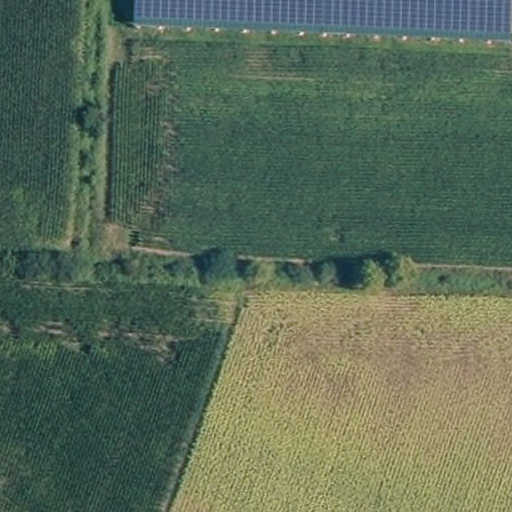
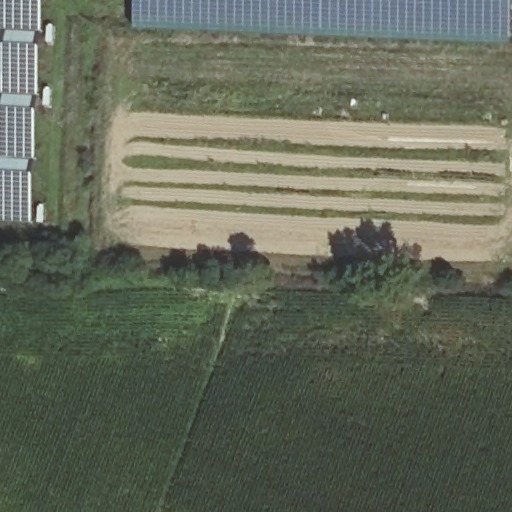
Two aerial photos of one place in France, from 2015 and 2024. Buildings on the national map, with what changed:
new [(34,221),(0,219),(0,0),(46,0),(34,221)]
unchanged [(138,0),(512,0),(512,42),(136,25),(138,0)]

